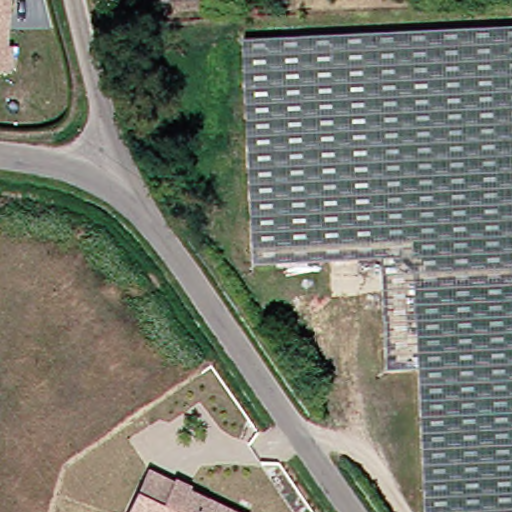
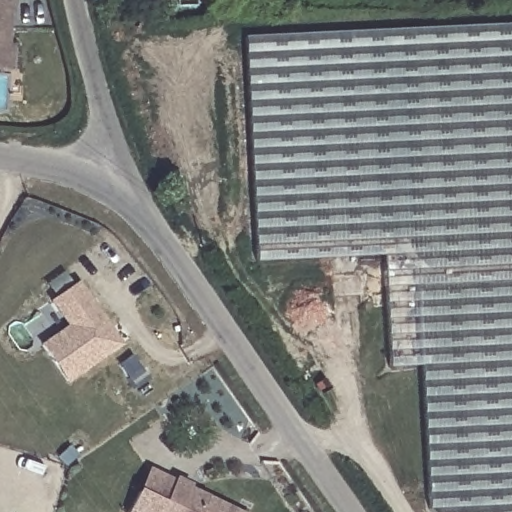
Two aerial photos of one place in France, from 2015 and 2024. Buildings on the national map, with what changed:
unchanged [(0,65),(0,0),(11,0),(10,10),(4,16),(3,43),(15,44),(14,65),(0,65)]
unchanged [(410,368),(378,368),(367,255),(240,258),(228,37),(512,23),(512,512),(422,512),(410,368)]
new [(65,329),(48,304),(74,286),(116,348),(62,385),(37,348),(65,329)]
unchanged [(140,495),(150,473),(176,485),(235,512),(133,512),(140,495)]

